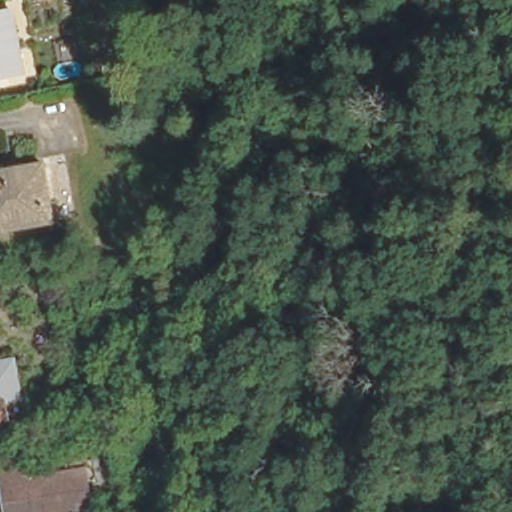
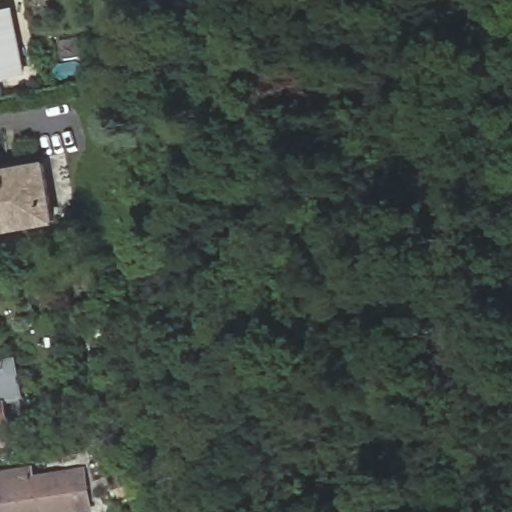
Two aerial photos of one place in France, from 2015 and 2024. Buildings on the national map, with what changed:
unchanged [(23,75),(0,79),(0,14),(12,12),(23,75)]
unchanged [(43,162),(51,219),(30,221),(13,224),(0,226),(0,169),(43,162)]
unchanged [(16,356),(24,398),(5,402),(2,382),(0,382),(0,359),(16,356)]
unchanged [(0,438),(0,382),(2,382),(5,402),(8,418),(17,418),(19,432),(20,435),(8,437),(0,438)]
unchanged [(74,512),(9,512),(5,481),(85,468),(90,503),(90,507),(77,511),(74,512)]

